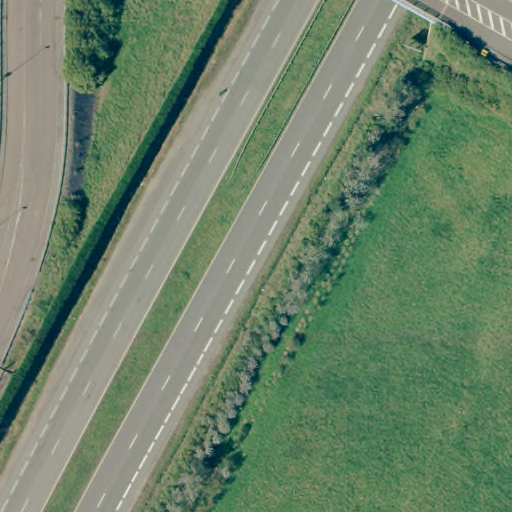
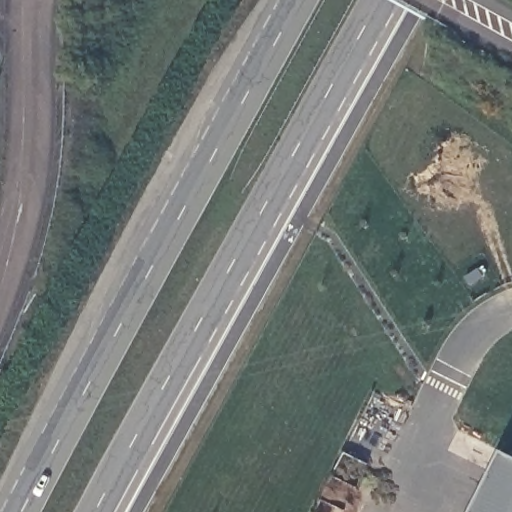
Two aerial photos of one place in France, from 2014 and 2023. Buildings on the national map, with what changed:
new [(512,454),(512,512),(471,512),(502,449),(512,454)]

